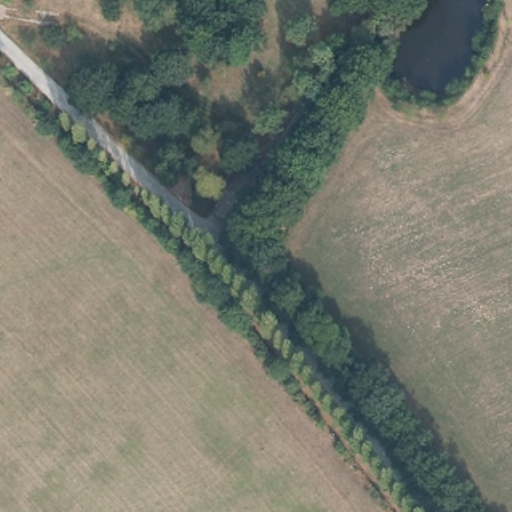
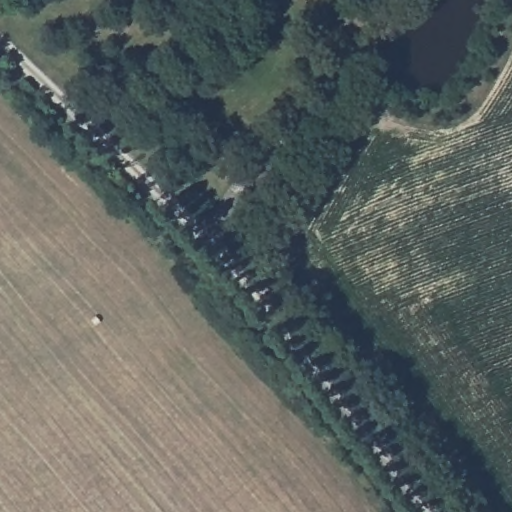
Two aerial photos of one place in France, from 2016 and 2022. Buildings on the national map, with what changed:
unchanged [(247,159),(255,167),(266,157),(280,172),(253,207),(227,180),(247,159)]

